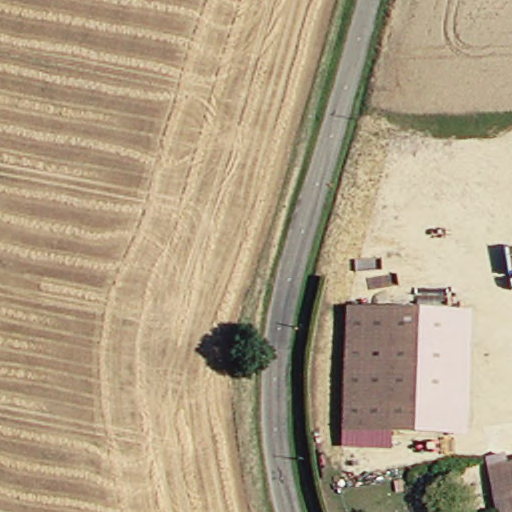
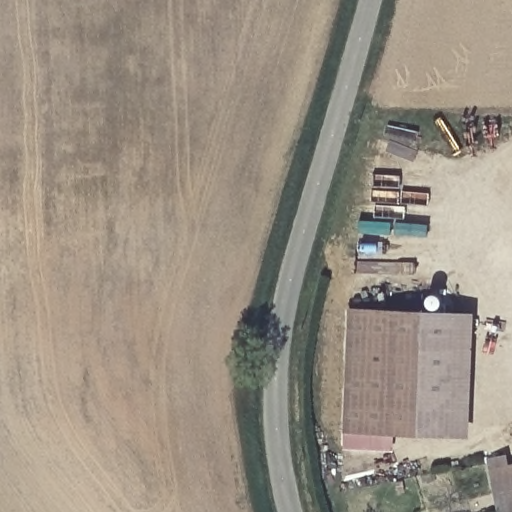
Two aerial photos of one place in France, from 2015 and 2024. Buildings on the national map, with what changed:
unchanged [(460,310),(451,435),(352,429),(357,305),(460,310)]
unchanged [(512,467),(512,512),(499,512),(496,468),(512,467)]

